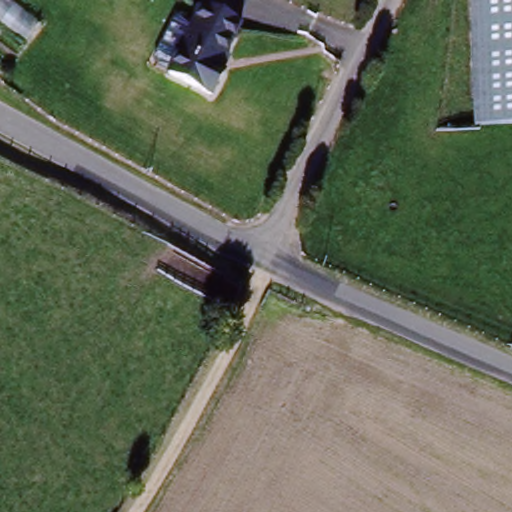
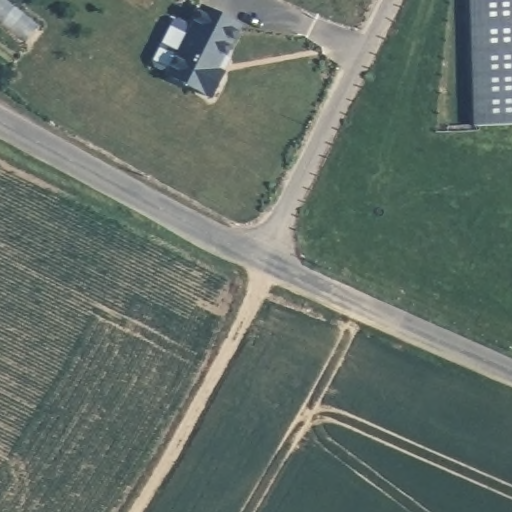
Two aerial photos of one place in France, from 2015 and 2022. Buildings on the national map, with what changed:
unchanged [(512,0),(512,125),(479,127),(470,0),(512,0)]
unchanged [(217,72),(222,75),(210,98),(167,75),(202,9),(240,28),(217,72)]

